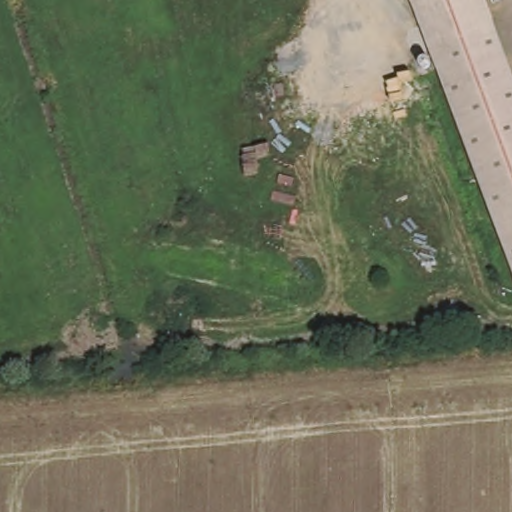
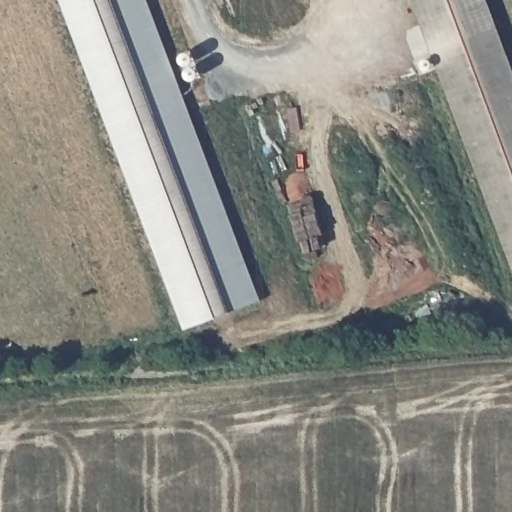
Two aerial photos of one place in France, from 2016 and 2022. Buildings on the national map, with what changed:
new [(170,60),(179,55),(182,54),(188,55),(190,57),(195,75),(195,78),(195,80),(190,82),(181,87),(261,300),(184,331),(59,0),(147,0),(170,60)]
unchanged [(512,263),(411,0),(489,0),(512,61),(512,263)]

